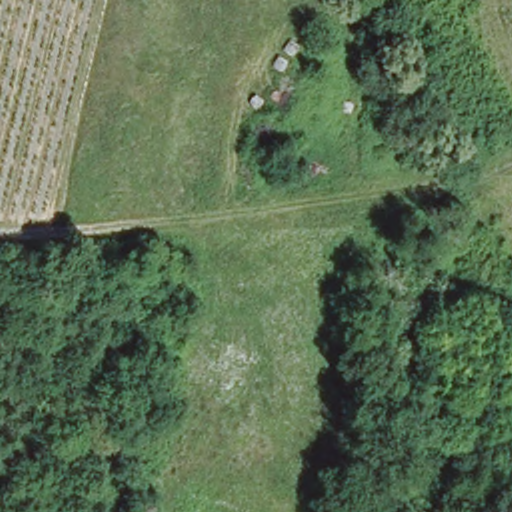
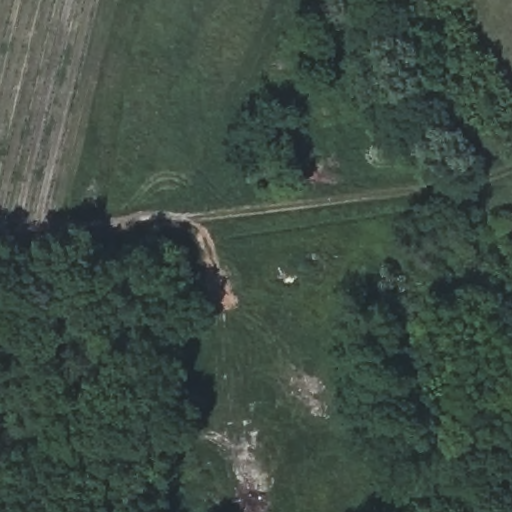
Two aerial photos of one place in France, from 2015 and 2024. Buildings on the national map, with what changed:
unchanged [(280,159),(281,179),(263,178),(264,158),(280,159)]

